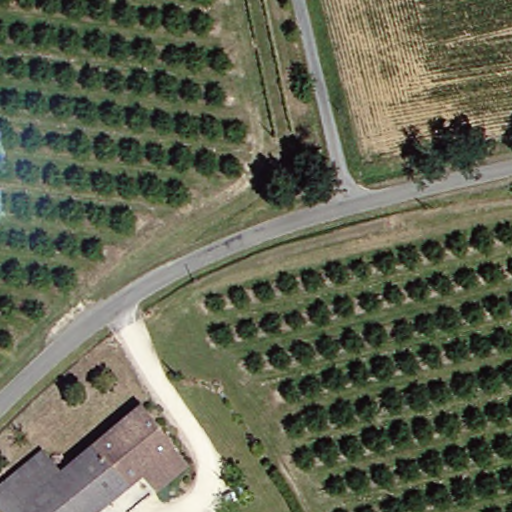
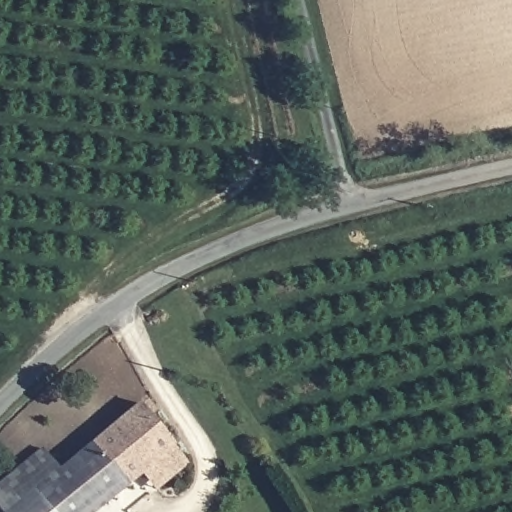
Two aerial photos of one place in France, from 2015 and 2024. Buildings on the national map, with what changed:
unchanged [(0,495),(54,450),(70,468),(148,405),(183,447),(195,462),(166,487),(156,473),(111,512),(15,512),(0,496),(0,495)]

